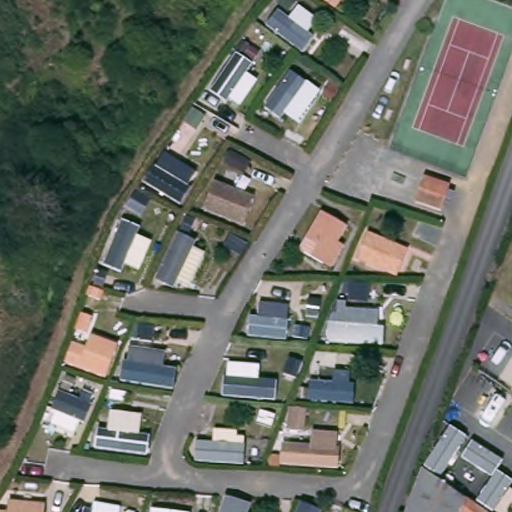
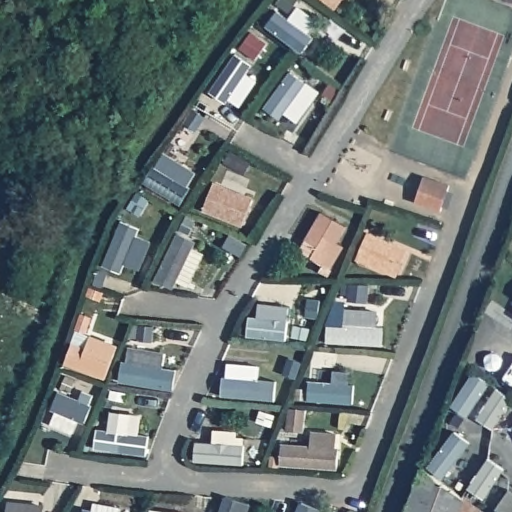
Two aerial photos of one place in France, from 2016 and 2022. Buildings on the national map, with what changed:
unchanged [(317,0),(342,0),(333,12),(317,0)]
unchanged [(346,228),(337,245),(342,250),(330,273),(308,262),(315,249),(303,242),(317,212),(346,228)]
unchanged [(410,248),(398,272),(358,256),(370,230),(410,248)]
unchanged [(460,500),(455,512),(403,512),(417,476),(460,500)]
unchanged [(46,512),(0,512),(0,509),(8,509),(9,498),(47,499),(46,512)]
unchanged [(467,512),(469,508),(476,512),(467,512)]

